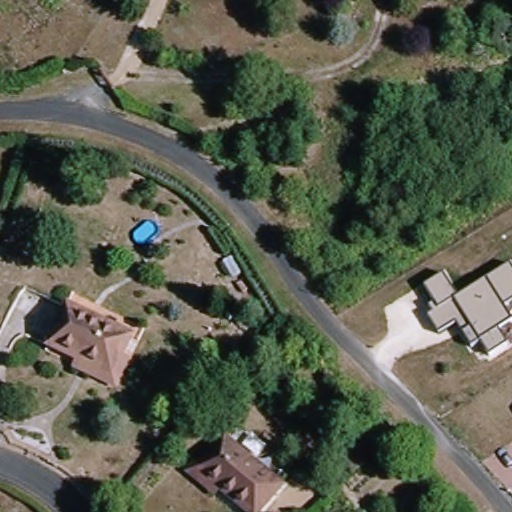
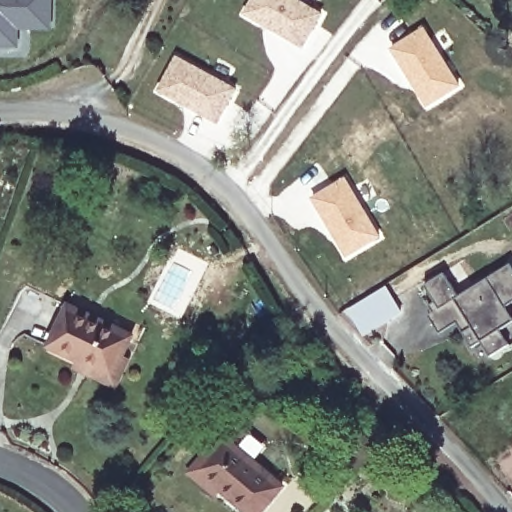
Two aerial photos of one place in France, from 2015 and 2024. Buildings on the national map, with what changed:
new [(54,0),(54,30),(21,31),(20,50),(0,49),(0,0),(54,0)]
new [(300,0),(323,14),(302,49),(240,13),(249,0),(300,0)]
new [(423,25),(460,86),(424,109),(388,47),(423,25)]
new [(176,54),(237,89),(216,125),(154,91),(176,54)]
new [(345,175),(380,237),(344,259),(309,197),(345,175)]
unchanged [(512,303),(507,306),(512,316),(512,323),(500,330),(510,346),(490,359),(482,345),(471,350),(456,325),(440,336),(428,317),(435,312),(431,305),(436,302),(426,285),(443,274),(458,296),(510,265),(512,268),(512,303)]
new [(385,285),(403,313),(361,337),(344,310),(385,285)]
unchanged [(126,385),(85,364),(82,362),(86,353),(60,341),(80,300),(110,315),(142,331),(131,352),(141,357),(126,385)]
unchanged [(328,452),(353,430),(374,452),(349,475),(328,452)]
unchanged [(296,485),(272,512),(263,512),(232,487),(227,493),(199,470),(213,453),(220,458),(239,436),(296,485)]
unchanged [(393,444),(404,457),(390,468),(379,456),(393,444)]

